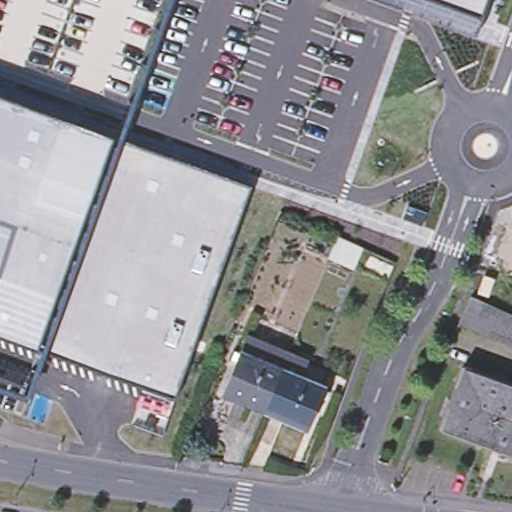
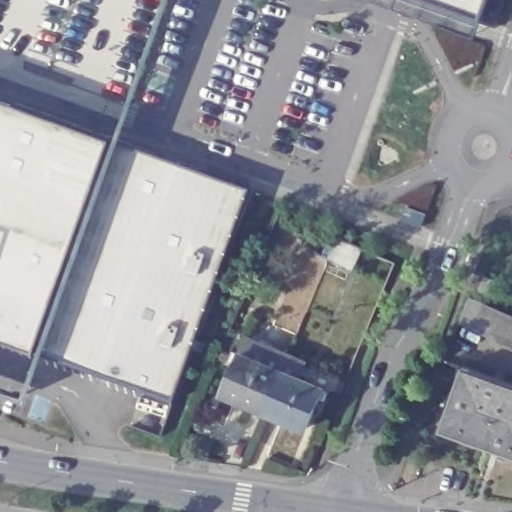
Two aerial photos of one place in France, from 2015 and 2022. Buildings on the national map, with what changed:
unchanged [(439,0),(488,0),(483,15),(439,0)]
unchanged [(0,100),(108,142),(31,352),(0,339),(0,100)]
unchanged [(108,142),(250,187),(175,394),(35,343),(108,142)]
unchanged [(362,248),(353,267),(330,257),(338,237),(362,248)]
unchanged [(512,315),(512,346),(460,323),(471,297),(512,315)]
unchanged [(304,433),(262,415),(218,397),(234,359),(240,342),(285,360),(302,367),(295,384),(320,394),(304,433)]
unchanged [(440,431),(465,366),(512,383),(512,457),(440,431)]

